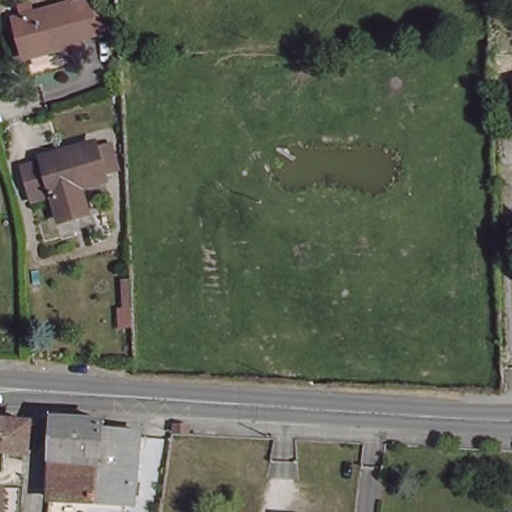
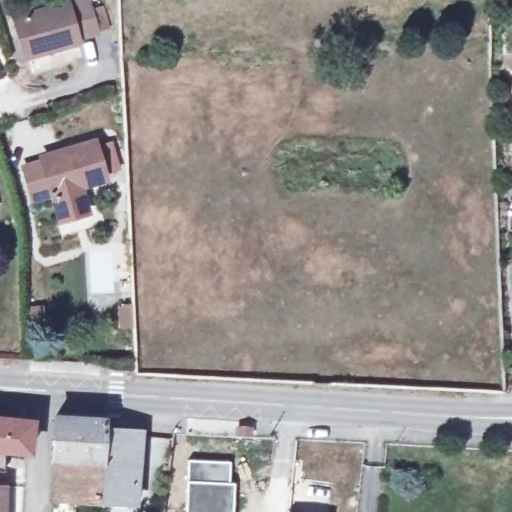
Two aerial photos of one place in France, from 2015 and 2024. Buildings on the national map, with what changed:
unchanged [(89,0),(100,29),(84,35),(87,41),(31,61),(17,23),(81,0),(89,0)]
unchanged [(123,169),(109,173),(111,181),(82,193),(89,218),(58,230),(49,201),(29,207),(17,165),(94,138),(101,148),(110,143),(123,169)]
unchanged [(34,458),(13,457),(7,467),(0,466),(0,419),(36,422),(34,458)]
unchanged [(52,422),(101,426),(101,436),(100,468),(49,467),(52,422)]
unchanged [(138,437),(133,510),(46,505),(49,467),(100,468),(101,436),(138,437)]
new [(226,486),(234,486),(232,512),(185,512),(189,460),(225,462),(226,486)]
unchanged [(8,512),(0,512),(0,492),(8,493),(8,512)]

